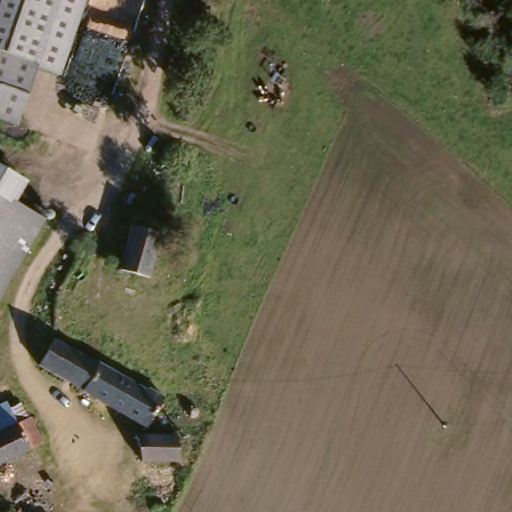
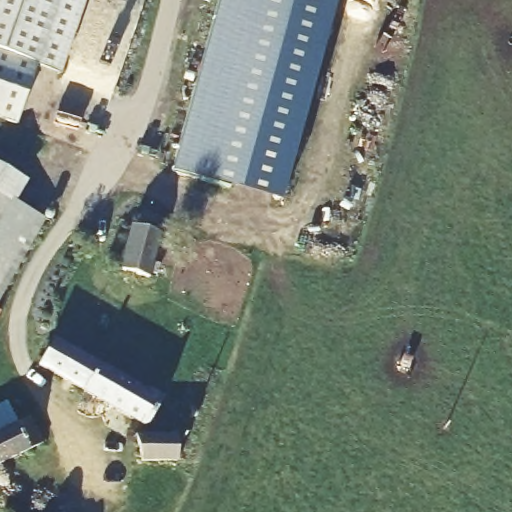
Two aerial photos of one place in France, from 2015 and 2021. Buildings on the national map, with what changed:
unchanged [(32,79),(11,135),(0,132),(0,0),(85,0),(54,86),(32,79)]
new [(336,0),(280,201),(172,170),(218,0),(336,0)]
unchanged [(13,209),(0,227),(0,167),(25,182),(13,209)]
unchanged [(0,295),(0,227),(13,209),(29,219),(45,230),(0,295)]
unchanged [(145,280),(140,279),(117,273),(118,268),(129,226),(154,233),(145,280)]
unchanged [(138,392),(140,387),(158,397),(137,427),(30,368),(44,343),(138,392)]
unchanged [(0,410),(8,425),(21,419),(34,448),(0,465),(0,410)]
unchanged [(138,439),(174,441),(176,441),(174,466),(154,465),(153,465),(137,464),(137,439),(138,439)]

